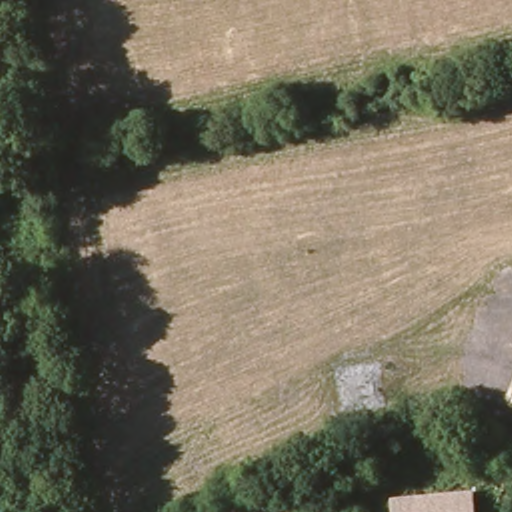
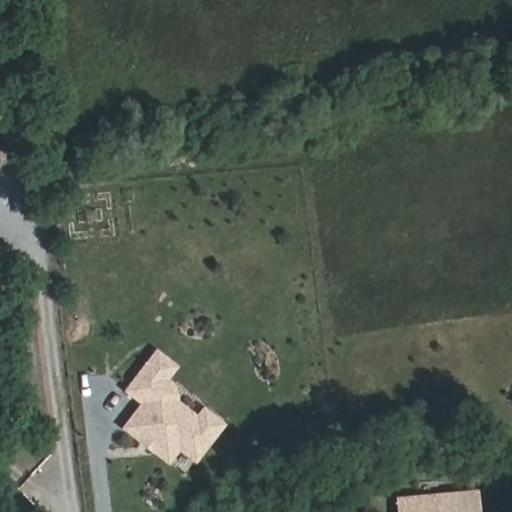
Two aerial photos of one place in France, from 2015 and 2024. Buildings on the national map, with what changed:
new [(195,463),(178,450),(168,465),(121,428),(140,405),(124,390),(156,349),(178,366),(168,380),(175,385),(178,400),(197,415),(203,406),(226,425),(195,463)]
unchanged [(471,512),(398,512),(397,503),(470,497),(471,512)]

